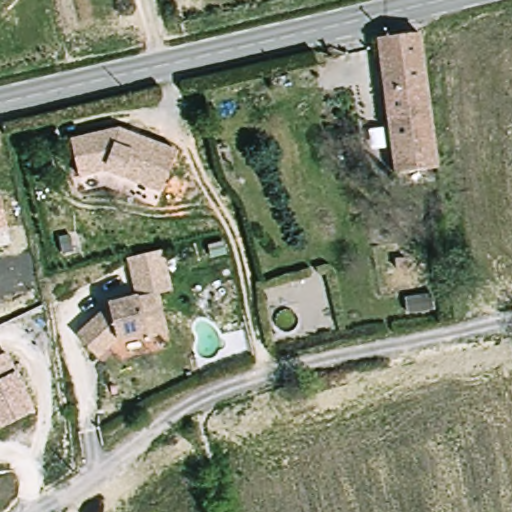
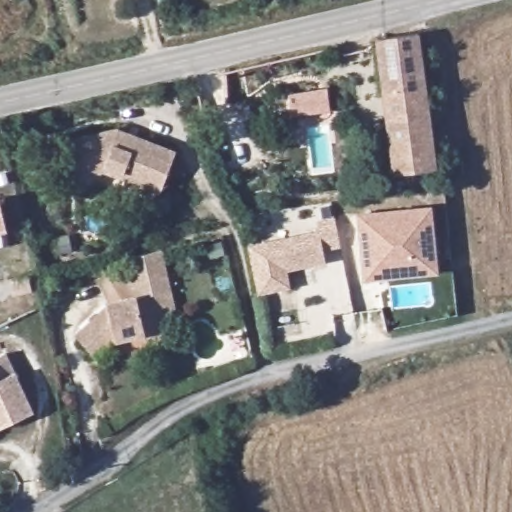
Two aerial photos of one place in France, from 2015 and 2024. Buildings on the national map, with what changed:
unchanged [(436,167),(394,174),(379,41),(422,33),(436,167)]
new [(327,87),(331,111),(292,117),(288,95),(327,87)]
unchanged [(77,175),(70,137),(116,125),(176,151),(159,191),(121,175),(105,168),(77,175)]
unchanged [(8,231),(0,234),(0,199),(2,199),(8,231)]
new [(433,205),(439,273),(363,282),(357,215),(433,205)]
new [(335,217),(341,247),(324,252),(326,265),(288,272),(292,288),(259,296),(248,245),(318,230),(317,221),(335,217)]
unchanged [(167,332),(145,336),(145,333),(114,340),(98,357),(75,335),(110,302),(138,295),(157,291),(167,332)]
unchanged [(5,351),(13,368),(32,413),(0,426),(0,427),(0,353),(5,351)]

